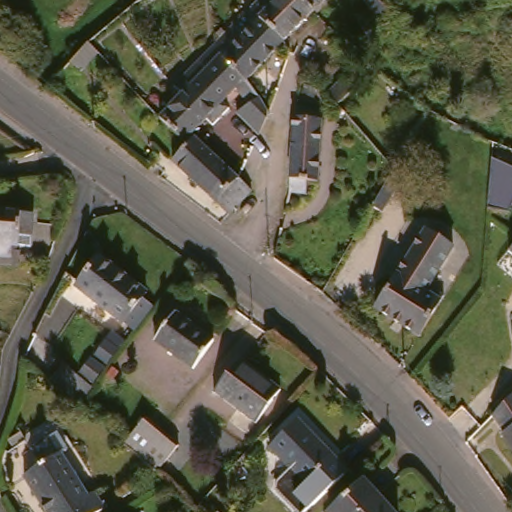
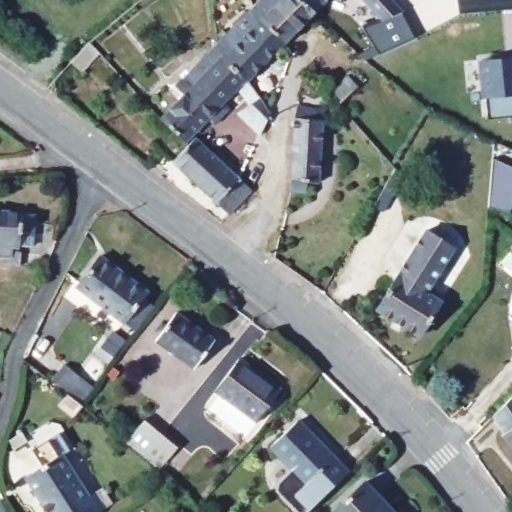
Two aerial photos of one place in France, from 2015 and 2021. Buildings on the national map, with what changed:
unchanged [(253,7),(260,0),(304,0),(315,12),(285,42),(253,7)]
unchanged [(315,12),(304,0),(327,0),(315,12)]
new [(401,12),(379,23),(359,0),(390,0),(401,12)]
demolished [(374,10),(366,0),(409,0),(416,8),(408,15),(423,42),(424,44),(394,56),(387,42),(377,45),(359,17),(374,10)]
unchanged [(237,68),(224,55),(221,40),(253,7),(285,42),(249,79),(237,68)]
demolished [(87,36),(95,46),(79,64),(69,55),(87,36)]
unchanged [(274,113),(271,124),(264,136),(239,117),(252,108),(237,89),(224,102),(231,108),(225,115),(213,103),(194,84),(187,73),(221,38),(221,40),(224,55),(237,68),(249,79),(264,99),(274,113)]
new [(90,47),(97,57),(81,75),(71,66),(90,47)]
new [(512,117),(487,120),(481,61),(512,57),(512,117)]
unchanged [(194,84),(213,103),(225,115),(215,125),(207,120),(188,139),(162,115),(186,90),(178,82),(187,73),(194,84)]
unchanged [(345,78),(348,76),(357,85),(337,100),(330,91),(345,78)]
unchanged [(300,115),(304,99),(333,104),(327,119),(326,145),(299,143),(300,115)]
unchanged [(241,176),(253,188),(231,212),(217,198),(175,159),(188,145),(191,142),(197,135),(239,175),(241,176)]
unchanged [(324,177),(313,177),(313,189),(296,187),(299,143),(326,145),(326,149),(326,154),(324,177)]
unchanged [(485,189),(486,160),(512,172),(512,195),(504,212),(500,211),(483,210),(485,189)]
unchanged [(395,168),(406,174),(394,193),(383,212),(373,206),(373,205),(384,187),(394,171),(395,168)]
unchanged [(31,209),(41,209),(38,244),(26,243),(26,245),(23,245),(23,250),(25,250),(24,266),(0,265),(0,206),(31,209)]
unchanged [(399,277),(431,226),(457,243),(434,281),(448,290),(446,296),(425,330),(381,305),(399,277)]
unchanged [(88,277),(105,253),(154,290),(133,322),(82,285),(88,277)]
unchanged [(184,313),(222,341),(201,368),(163,340),(184,313)]
unchanged [(49,366),(57,356),(85,376),(72,393),(45,372),(49,366)]
unchanged [(235,367),(243,357),(283,388),(258,418),(219,387),(235,367)]
unchanged [(512,390),(512,431),(508,426),(511,424),(497,405),(498,404),(512,390)]
unchanged [(151,462),(136,448),(122,433),(141,411),(153,421),(156,425),(171,438),(151,462)]
unchanged [(300,417),(311,429),(336,453),(332,457),(340,465),(344,468),(320,492),(273,444),(300,417)]
unchanged [(67,450),(77,465),(96,493),(103,489),(113,505),(102,512),(59,512),(32,472),(67,450)]
unchanged [(401,512),(338,512),(335,510),(369,477),(401,512)]
unchanged [(217,512),(211,512),(214,509),(217,512)]

